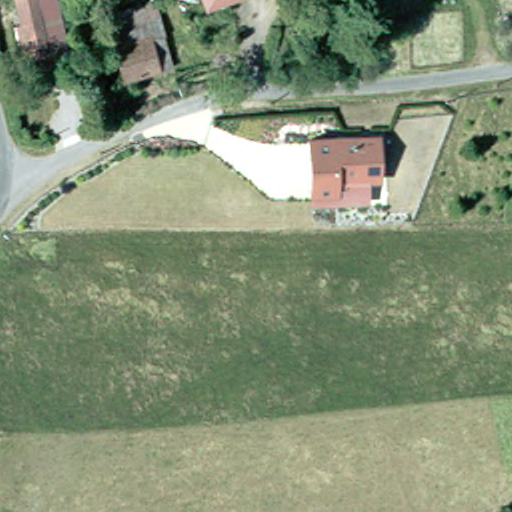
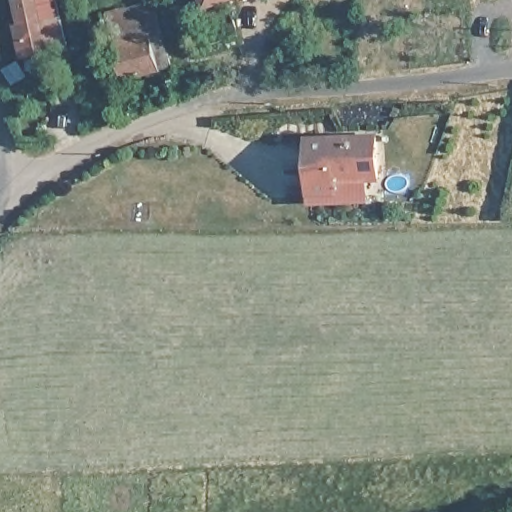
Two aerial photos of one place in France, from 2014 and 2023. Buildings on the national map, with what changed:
unchanged [(7,0),(42,0),(52,50),(13,58),(7,31),(2,1),(7,0)]
unchanged [(110,46),(98,13),(113,8),(142,0),(144,0),(149,14),(155,30),(110,46)]
unchanged [(187,0),(209,0),(190,6),(187,0)]
unchanged [(165,61),(121,77),(110,46),(155,30),(165,61)]
unchanged [(375,169),(333,178),(334,191),(309,195),(299,140),(367,128),(375,169)]

